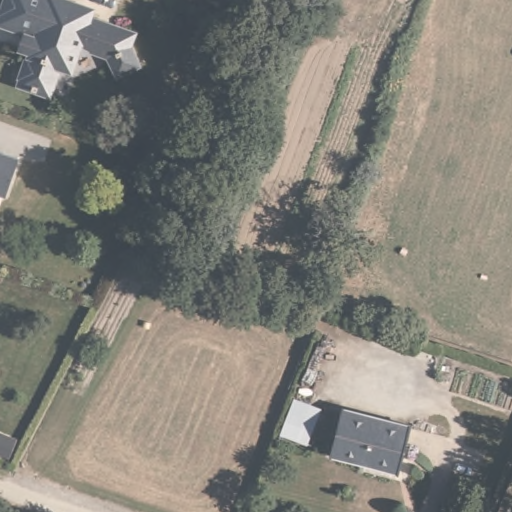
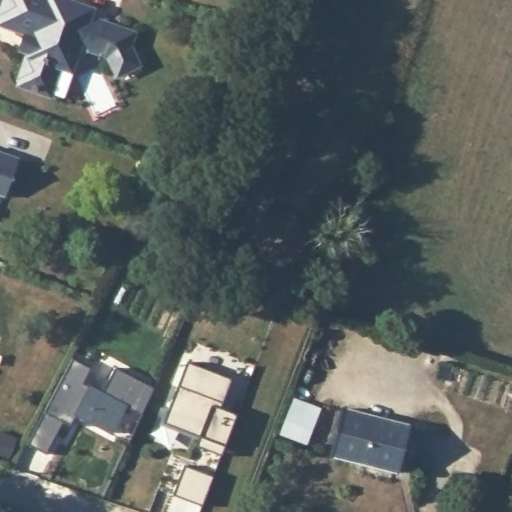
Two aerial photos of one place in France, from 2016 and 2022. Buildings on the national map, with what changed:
unchanged [(143,72),(119,85),(109,63),(93,55),(75,65),(69,80),(60,77),(50,104),(11,90),(13,84),(10,81),(17,65),(19,65),(23,57),(13,53),(20,37),(0,29),(0,22),(0,10),(4,0),(45,0),(93,17),(91,21),(135,38),(130,50),(143,72)]
unchanged [(0,200),(0,154),(21,161),(6,201),(0,200)]
new [(70,358),(88,366),(80,382),(86,385),(103,391),(114,368),(152,387),(141,413),(126,407),(113,435),(74,415),(69,426),(59,422),(44,453),(25,444),(70,358)]
new [(169,408),(186,362),(230,378),(218,407),(235,414),(220,455),(194,445),(196,439),(159,423),(165,408),(169,408)]
unchanged [(325,415),(310,453),(278,440),(292,401),(325,415)]
unchanged [(330,448),(341,402),(409,421),(397,466),(330,448)]
new [(183,465),(211,475),(200,505),(172,495),(183,465)]

